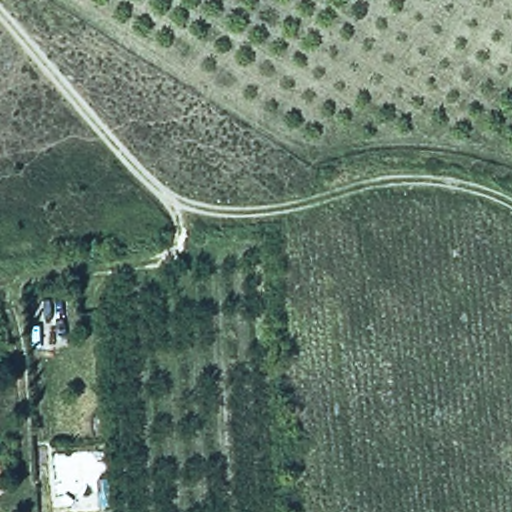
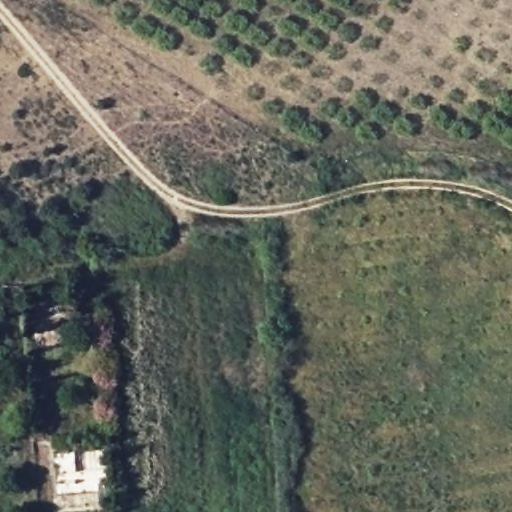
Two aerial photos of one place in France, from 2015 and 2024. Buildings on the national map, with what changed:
unchanged [(21,293),(41,293),(45,353),(24,355),(21,293)]
unchanged [(53,459),(104,457),(108,509),(96,510),(93,498),(55,500),(53,459)]

